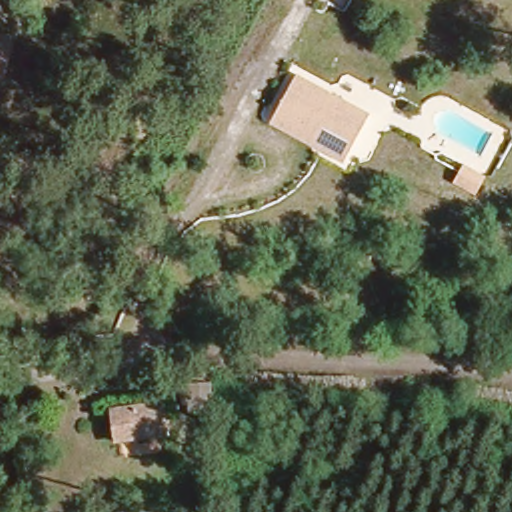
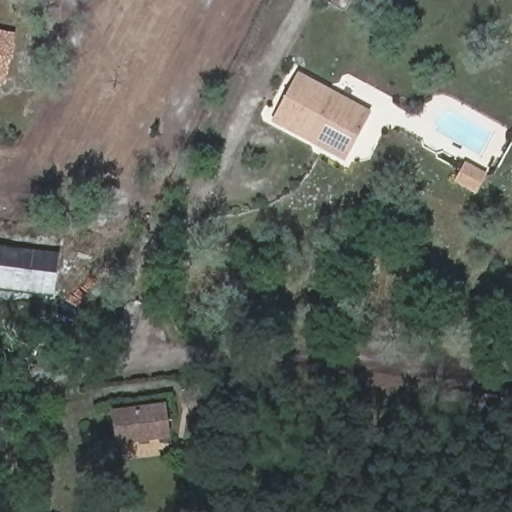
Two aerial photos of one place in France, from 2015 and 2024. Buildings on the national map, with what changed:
unchanged [(11,31),(2,73),(0,72),(0,29),(11,31)]
unchanged [(333,160),(260,126),(289,73),(361,110),(333,160)]
unchanged [(435,194),(457,205),(447,223),(425,211),(435,194)]
new [(59,254),(53,297),(0,290),(0,246),(59,254)]
unchanged [(185,413),(184,384),(208,381),(213,410),(185,413)]
unchanged [(114,410),(160,403),(165,433),(119,440),(114,410)]

